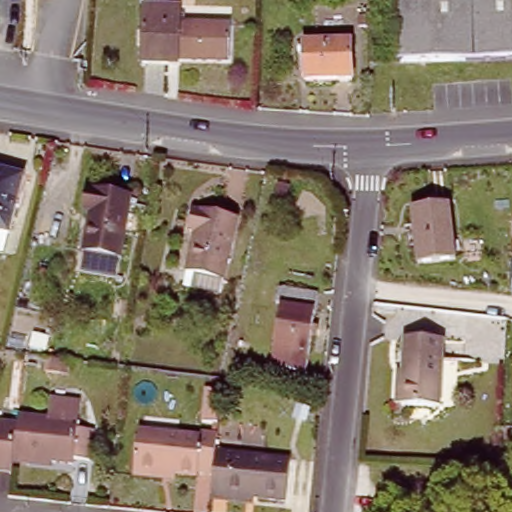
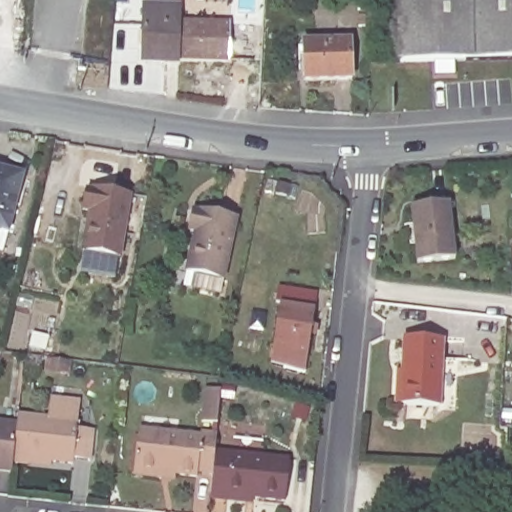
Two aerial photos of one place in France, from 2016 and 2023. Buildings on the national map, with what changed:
unchanged [(396,61),(395,0),(512,0),(512,59),(396,61)]
unchanged [(153,63),(139,63),(141,8),(156,8),(177,8),(177,22),(226,23),(227,23),(226,60),(224,60),(178,59),(178,63),(164,63),(153,63)]
unchanged [(301,80),(301,40),(348,40),(349,79),(301,80)]
unchanged [(0,169),(27,176),(6,253),(0,251),(0,169)]
unchanged [(84,255),(91,209),(83,208),(86,189),(93,190),(93,187),(131,192),(120,260),(84,255)]
unchanged [(415,262),(409,206),(446,202),(453,258),(415,262)]
unchanged [(183,294),(196,233),(188,232),(191,213),(199,214),(200,211),(235,219),(218,300),(183,294)]
unchanged [(314,306),(275,301),(276,289),(277,286),(316,291),(315,296),(314,306)]
unchanged [(270,366),(279,304),(314,309),(303,374),(270,366)]
unchanged [(389,378),(399,379),(401,343),(438,346),(437,364),(453,365),(451,413),(398,410),(388,410),(389,378)]
unchanged [(219,393),(216,425),(201,423),(204,391),(219,393)]
unchanged [(88,457),(72,456),(71,464),(28,460),(28,463),(13,462),(16,427),(18,415),(49,418),(51,401),(78,403),(75,427),(90,429),(88,457)]
unchanged [(13,462),(11,475),(0,474),(0,425),(16,427),(13,462)]
unchanged [(196,473),(196,478),(161,475),(160,480),(132,477),(138,433),(198,439),(198,433),(215,435),(213,453),(213,458),(211,474),(196,473)]
unchanged [(208,500),(209,495),(211,474),(213,458),(213,453),(288,461),(284,502),(250,499),(249,504),(208,500)]

